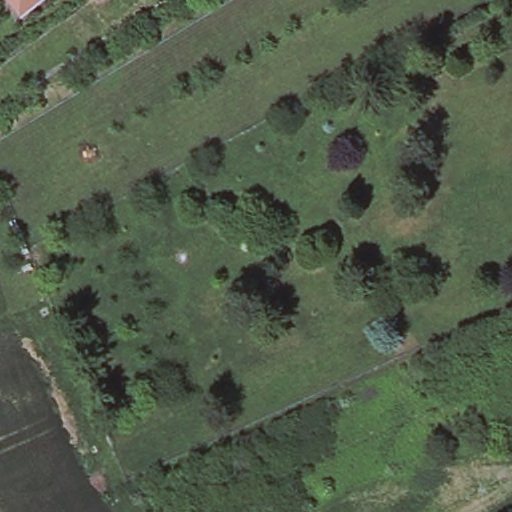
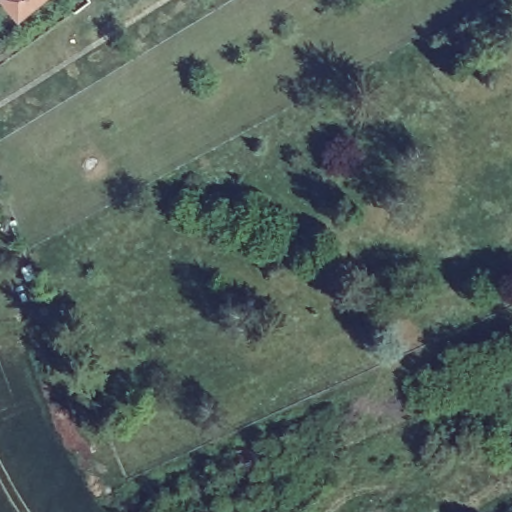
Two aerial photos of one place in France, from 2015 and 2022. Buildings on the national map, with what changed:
unchanged [(16,10),(7,0),(28,0),(16,10)]

